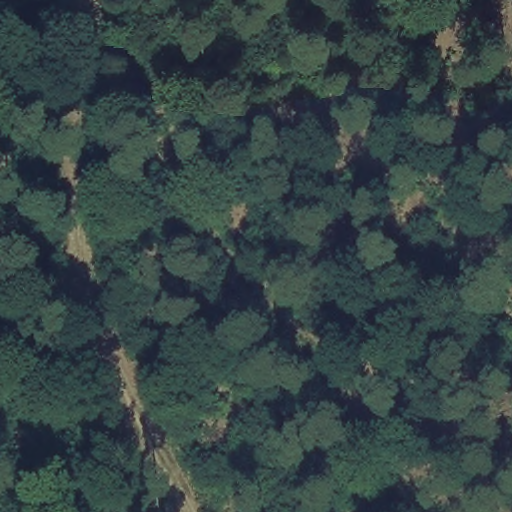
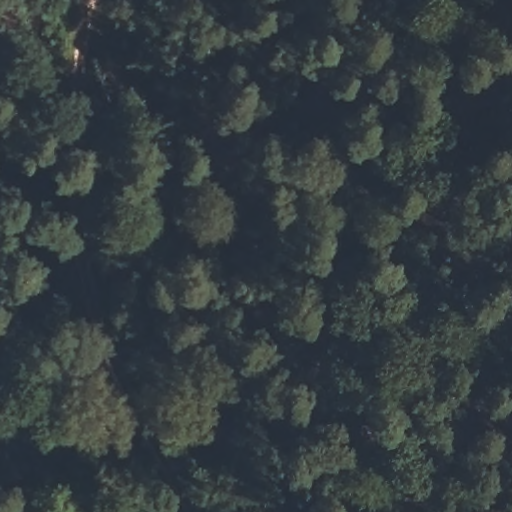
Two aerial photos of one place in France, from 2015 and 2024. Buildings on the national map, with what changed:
[]

